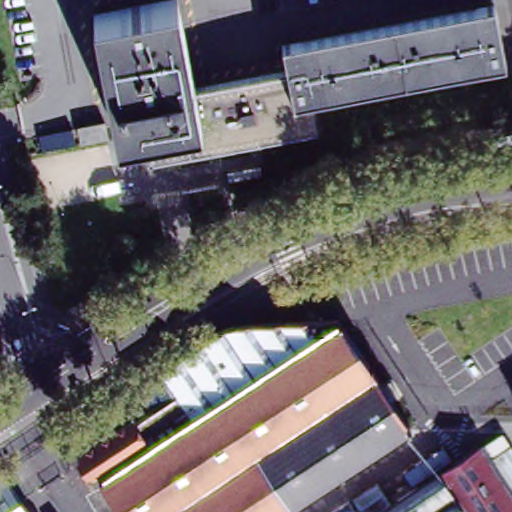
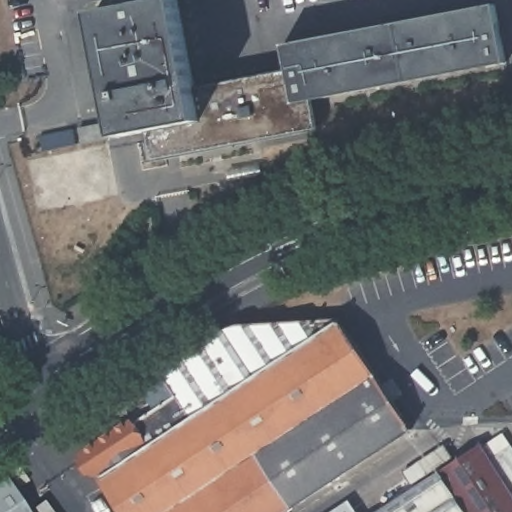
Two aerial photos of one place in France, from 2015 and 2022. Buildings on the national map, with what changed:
unchanged [(180,0),(196,85),(202,117),(146,130),(120,135),(95,10),(147,0),(180,0)]
unchanged [(496,0),(507,59),(310,99),(291,67),(286,43),(496,0)]
unchanged [(202,117),(196,85),(291,67),(310,99),(315,126),(178,152),(152,157),(149,145),(146,130),(202,117)]
unchanged [(107,120),(110,137),(83,142),(80,125),(107,120)]
unchanged [(44,150),(40,134),(74,127),(77,144),(44,150)]
unchanged [(129,426),(151,413),(136,390),(158,377),(172,368),(220,338),(223,336),(235,334),(250,331),(274,328),(294,326),(323,322),(330,321),(331,322),(332,323),(334,327),(187,422),(145,450),(129,426)]
unchanged [(382,385),(392,400),(385,405),(404,433),(286,512),(116,512),(96,482),(97,482),(145,450),(187,422),(334,327),(375,390),(382,385)]
unchanged [(92,476),(92,475),(84,476),(77,466),(79,456),(128,425),(129,426),(145,450),(97,482),(96,482),(92,476)]
unchanged [(480,442),(512,490),(512,512),(465,512),(437,470),(480,442)]
unchanged [(396,498),(389,488),(429,461),(436,471),(437,470),(465,512),(375,512),(396,498)]
unchanged [(4,476),(28,512),(0,512),(0,479),(4,476)]

